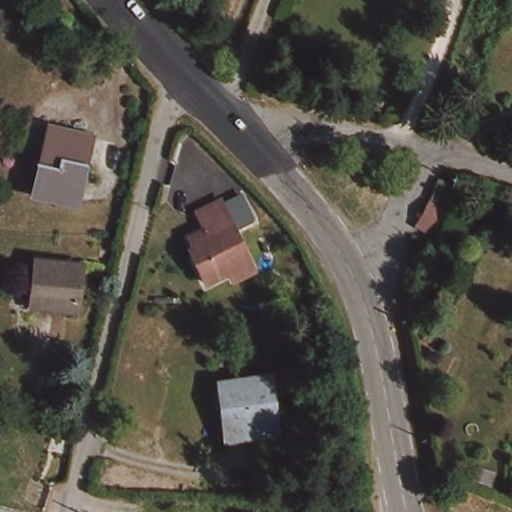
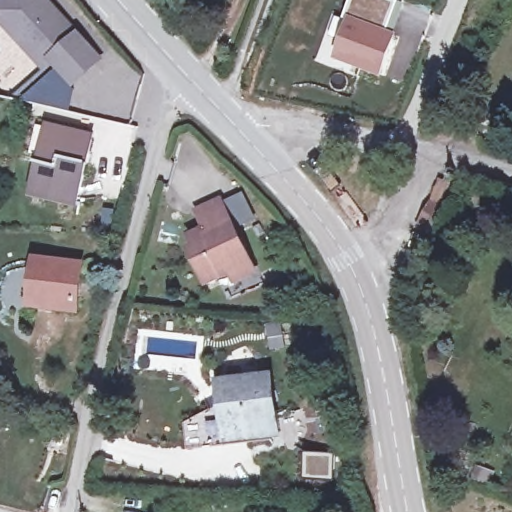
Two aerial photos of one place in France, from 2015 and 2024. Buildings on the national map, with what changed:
new [(44,74),(0,25),(0,1),(1,0),(49,0),(78,31),(103,59),(73,89),(53,67),(44,74)]
new [(406,5),(395,33),(398,34),(380,76),(334,60),(348,22),(344,21),(352,0),(391,0),(406,5)]
unchanged [(23,196),(38,132),(88,143),(73,208),(23,196)]
unchanged [(448,179),(444,193),(432,190),(437,175),(448,179)]
unchanged [(193,244),(189,234),(206,227),(198,209),(222,199),(248,262),(228,270),(203,281),(194,259),(188,246),(193,244)]
unchanged [(30,258),(73,267),(63,310),(20,301),(30,258)]
unchanged [(262,381),(273,430),(231,439),(221,390),(262,381)]

